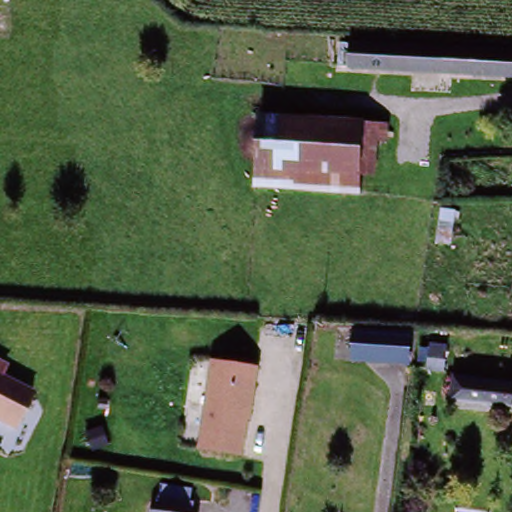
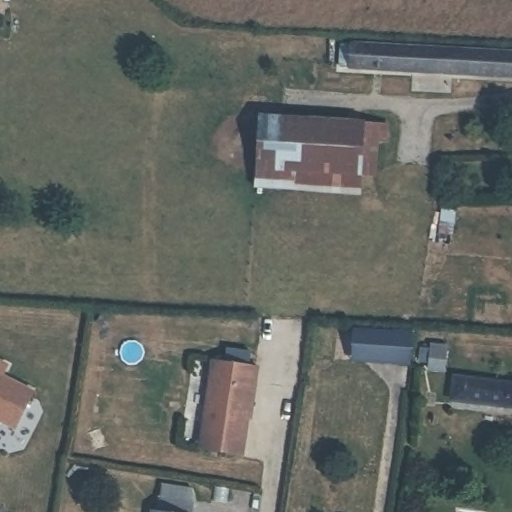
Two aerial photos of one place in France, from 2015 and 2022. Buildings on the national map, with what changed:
unchanged [(512,79),(337,70),(338,44),(512,53),(512,79)]
unchanged [(256,117),(363,124),(377,126),(387,126),(385,171),(373,173),(373,181),(359,182),(360,197),(251,190),(256,117)]
unchanged [(348,361),(350,328),(408,332),(403,364),(348,361)]
unchanged [(422,363),(423,344),(442,344),(442,363),(422,363)]
unchanged [(12,362),(7,371),(39,388),(20,425),(0,415),(0,356),(12,362)]
unchanged [(212,362),(258,368),(255,388),(252,388),(243,456),(200,450),(212,362)]
unchanged [(512,388),(512,412),(451,404),(453,381),(512,388)]
unchanged [(154,507),(159,507),(161,493),(191,498),(189,512),(153,512),(154,507)]

